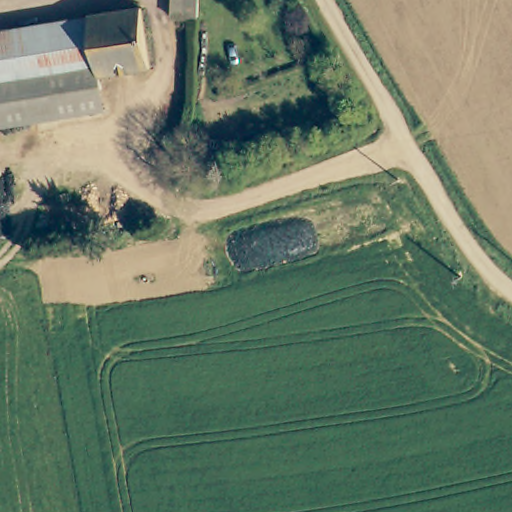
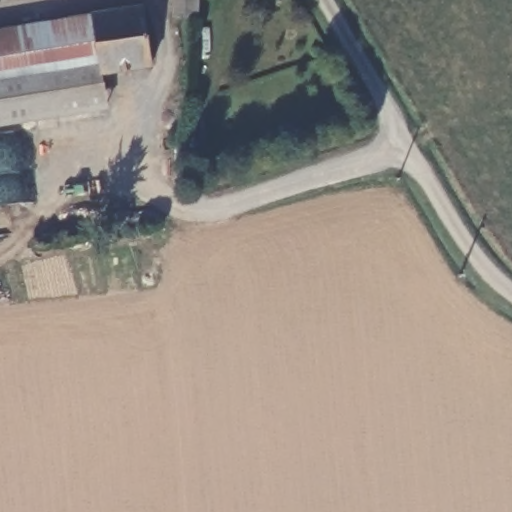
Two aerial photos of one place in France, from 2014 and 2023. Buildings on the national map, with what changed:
unchanged [(172,19),(173,0),(200,0),(200,20),(172,19)]
unchanged [(105,16),(157,9),(166,67),(115,75),(107,23),(105,16)]
unchanged [(73,118),(65,70),(0,81),(0,41),(107,23),(115,75),(121,110),(73,118)]
unchanged [(73,118),(0,130),(0,81),(65,70),(73,118)]

